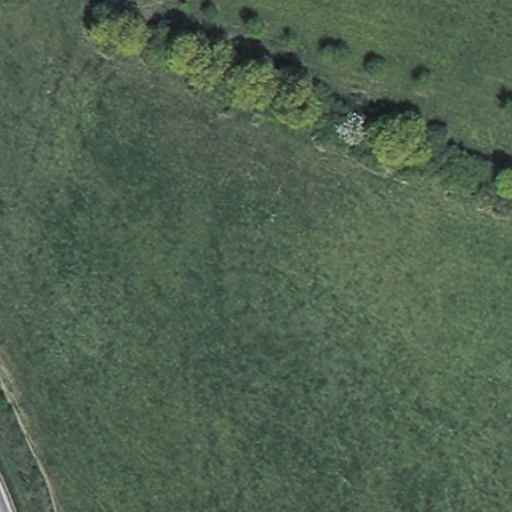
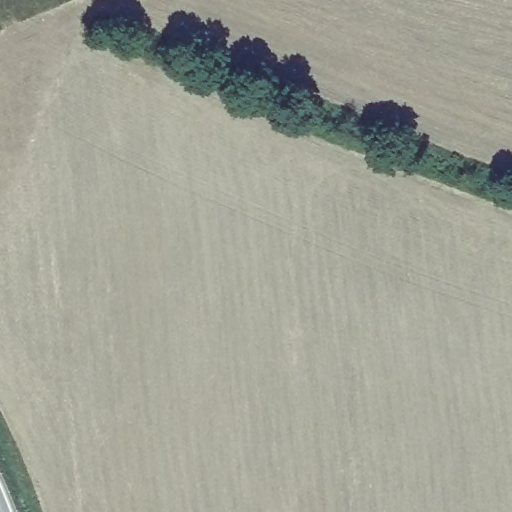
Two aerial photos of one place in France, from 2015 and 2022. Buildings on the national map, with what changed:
[]

